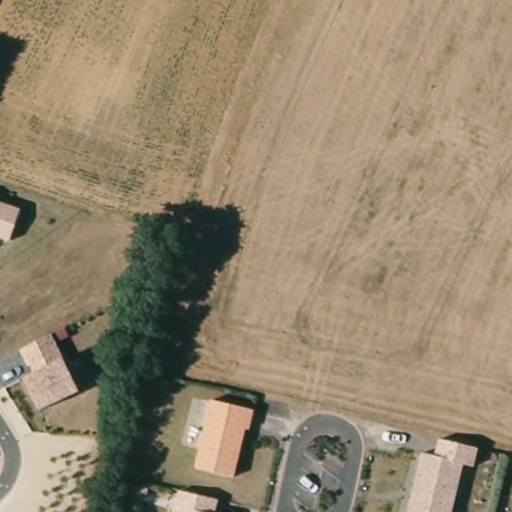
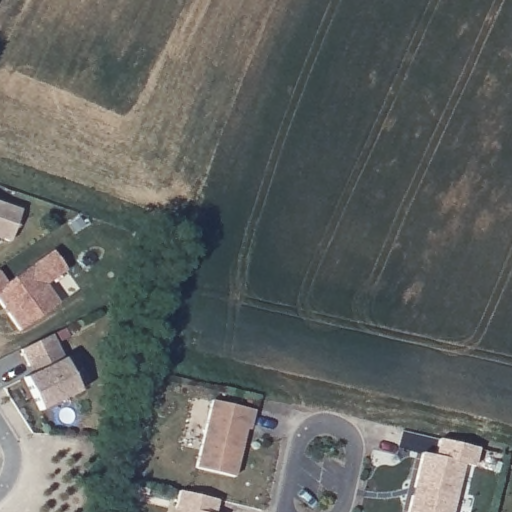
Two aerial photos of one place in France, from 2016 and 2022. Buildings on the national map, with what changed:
unchanged [(10,239),(0,236),(0,200),(20,207),(10,239)]
new [(0,272),(6,281),(53,249),(66,269),(46,283),(59,302),(19,329),(7,311),(3,306),(0,301),(0,272)]
unchanged [(27,375),(34,372),(21,348),(52,333),(64,356),(78,390),(41,408),(27,375)]
unchanged [(258,410),(253,429),(250,428),(238,476),(200,467),(216,399),(258,410)]
unchanged [(480,448),(483,449),(479,467),(469,464),(457,512),(413,512),(428,453),(441,457),(445,440),(480,448)]
unchanged [(206,496),(222,500),(220,512),(184,512),(185,509),(179,507),(183,491),(206,496)]

